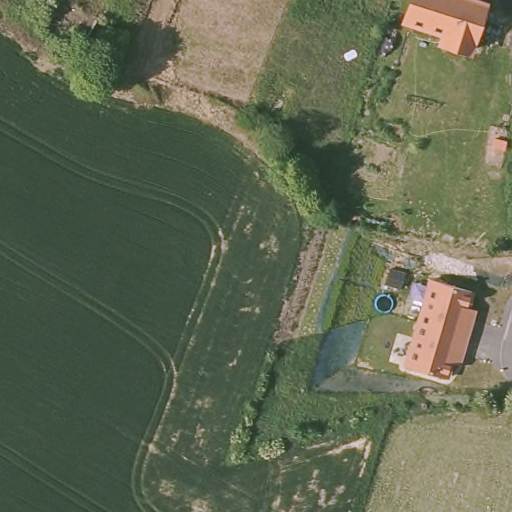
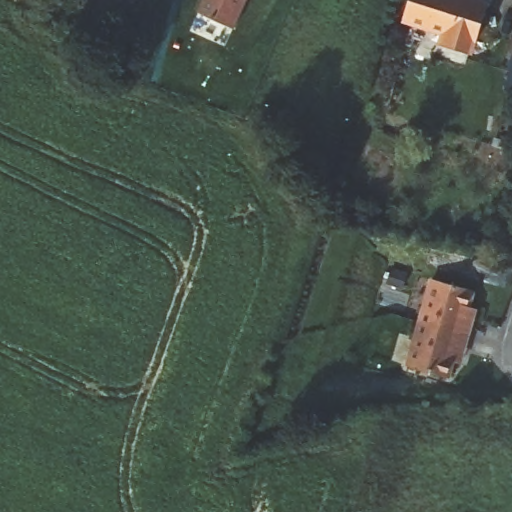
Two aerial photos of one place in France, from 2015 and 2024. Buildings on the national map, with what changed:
new [(233,30),(198,15),(205,0),(247,0),(233,30)]
unchanged [(471,52),(443,44),(446,34),(407,22),(413,0),(470,0),(484,4),(471,52)]
unchanged [(472,292),(468,308),(476,311),(461,365),(452,363),(448,381),(404,368),(429,280),(472,292)]

